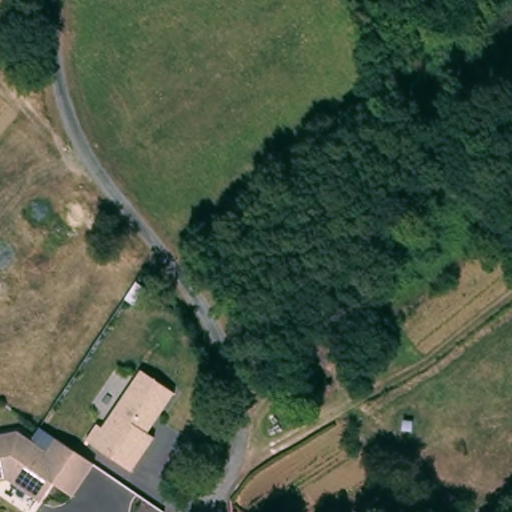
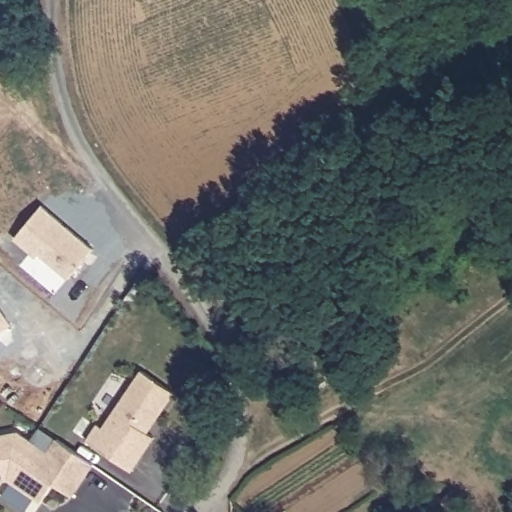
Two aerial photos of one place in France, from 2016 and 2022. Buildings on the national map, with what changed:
new [(14,239),(42,206),(93,247),(68,278),(39,252),(35,257),(14,239)]
unchanged [(175,394),(145,434),(153,440),(131,471),(87,442),(97,426),(103,429),(140,372),(175,394)]
unchanged [(46,451),(54,440),(92,465),(70,497),(53,487),(42,503),(9,480),(0,482),(0,436),(18,432),(46,451)]

